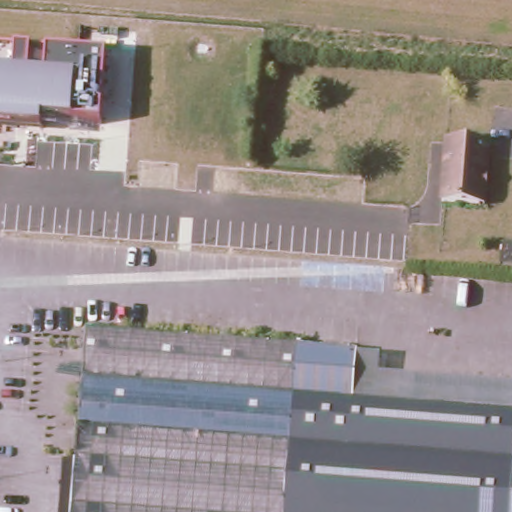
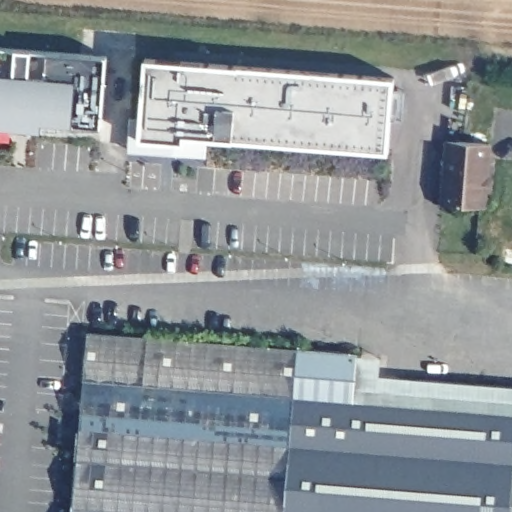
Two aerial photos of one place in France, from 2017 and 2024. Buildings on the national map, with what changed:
unchanged [(74,122),(43,120),(43,130),(0,127),(0,47),(16,49),(105,56),(102,124),(74,122)]
new [(388,152),(212,138),(208,157),(130,151),(131,117),(142,114),(145,56),(395,76),(388,152)]
unchanged [(471,203),(433,200),(438,136),(481,140),(478,173),(476,204),(471,203)]
unchanged [(352,346),(350,400),(512,414),(512,512),(69,512),(83,327),(352,346)]

